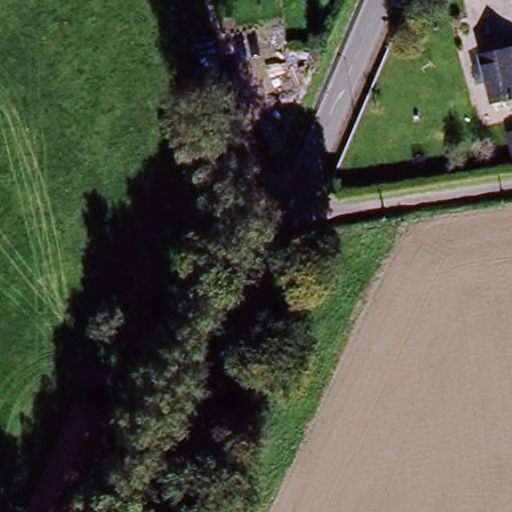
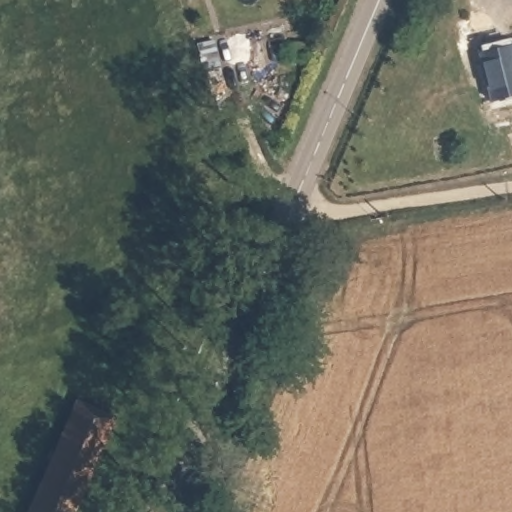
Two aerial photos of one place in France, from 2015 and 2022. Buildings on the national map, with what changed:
unchanged [(484,58),(512,50),(512,99),(496,104),(484,58)]
unchanged [(27,512),(70,423),(117,444),(85,512),(27,512)]

